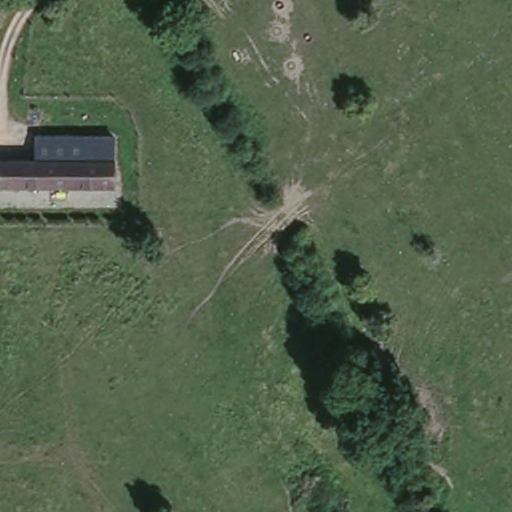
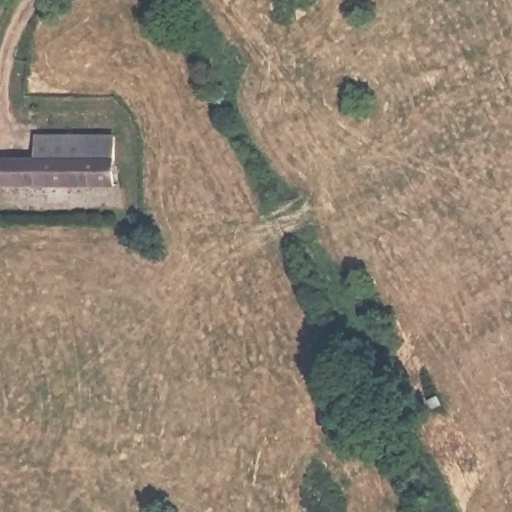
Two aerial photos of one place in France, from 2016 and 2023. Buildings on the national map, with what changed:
unchanged [(0,161),(39,160),(36,140),(112,137),(112,186),(0,192),(0,177),(0,161)]

